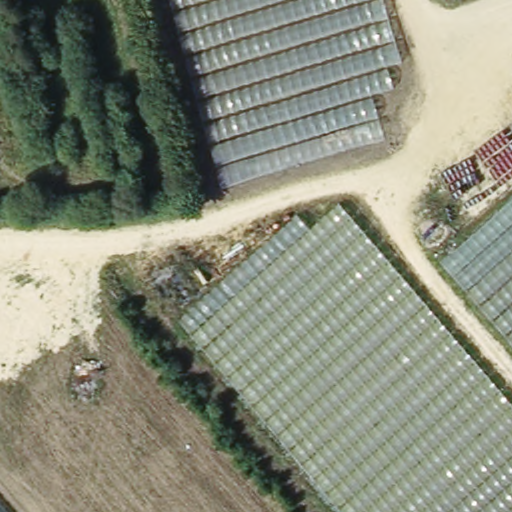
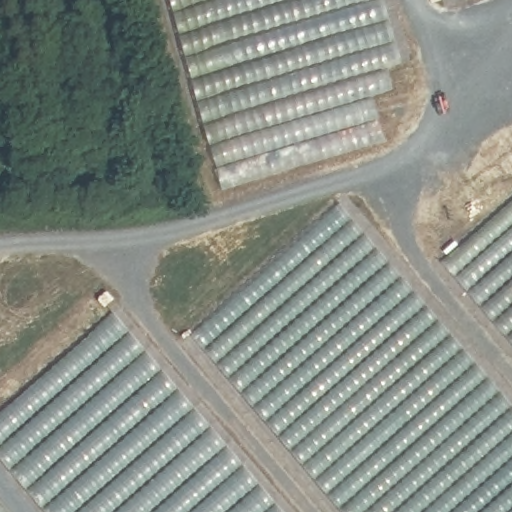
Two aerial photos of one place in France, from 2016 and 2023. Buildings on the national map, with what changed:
unchanged [(402,62),(387,65),(393,89),(372,95),(385,139),(231,186),(217,187),(194,100),(168,0),(384,0),(402,62)]
unchanged [(442,259),(512,196),(512,342),(442,259)]
unchanged [(342,204),(512,403),(512,512),(345,512),(180,317),(297,214),(314,232),(342,204)]
new [(45,512),(0,459),(0,409),(115,305),(291,512),(45,512)]

